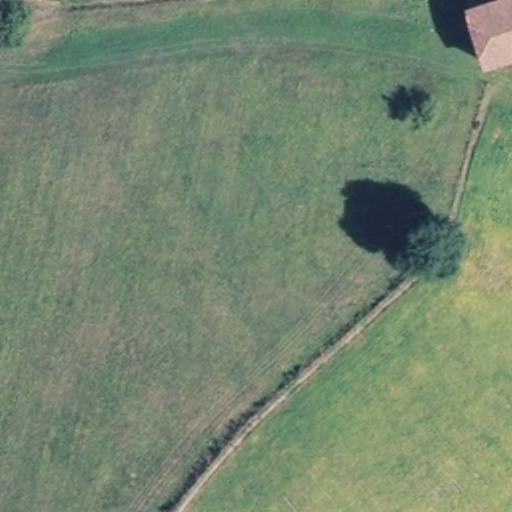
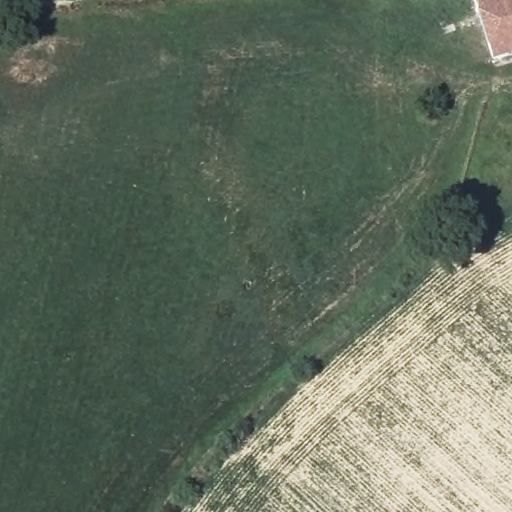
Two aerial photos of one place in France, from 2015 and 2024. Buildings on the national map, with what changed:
unchanged [(472,0),(512,0),(512,50),(487,56),(472,0)]

